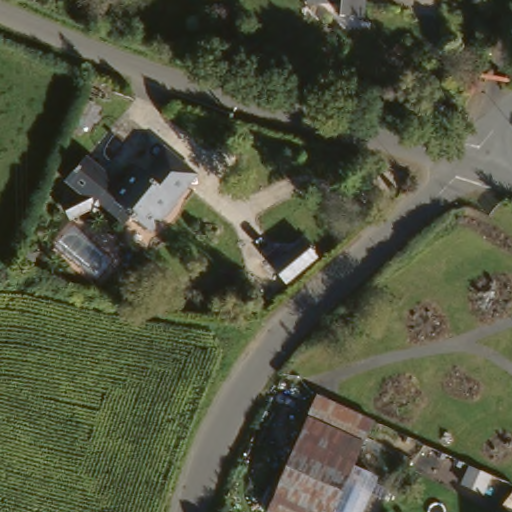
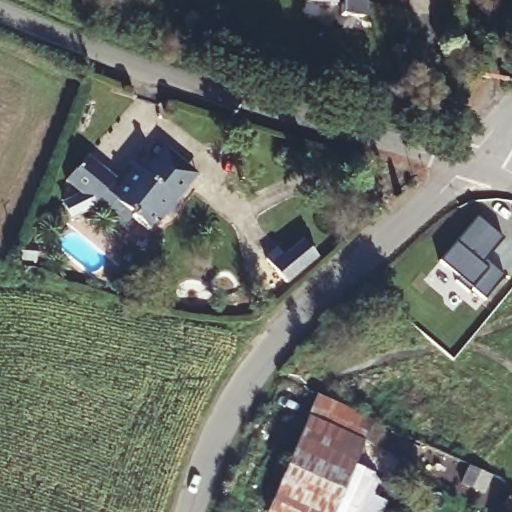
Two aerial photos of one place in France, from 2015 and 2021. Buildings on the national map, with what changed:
unchanged [(345,0),(374,0),(369,19),(343,12),(345,0)]
unchanged [(67,198),(85,188),(68,174),(88,149),(124,176),(139,158),(146,163),(171,135),(183,144),(173,155),(171,157),(191,173),(196,176),(183,191),(181,190),(168,205),(171,207),(156,225),(138,212),(128,224),(104,208),(95,205),(91,199),(73,209),(67,198)]
new [(503,239),(484,261),(504,277),(485,300),(472,289),(468,292),(456,282),(459,279),(440,261),(476,218),(503,239)]
unchanged [(316,252),(284,280),(270,266),(263,259),(276,248),(283,255),(304,237),(316,252)]
unchanged [(323,393),(382,418),(371,439),(313,417),(323,393)]
unchanged [(395,449),(366,512),(339,512),(270,512),(313,417),(371,439),(395,449)]

